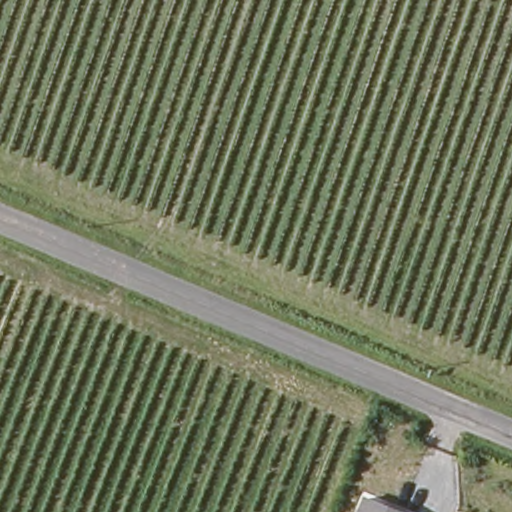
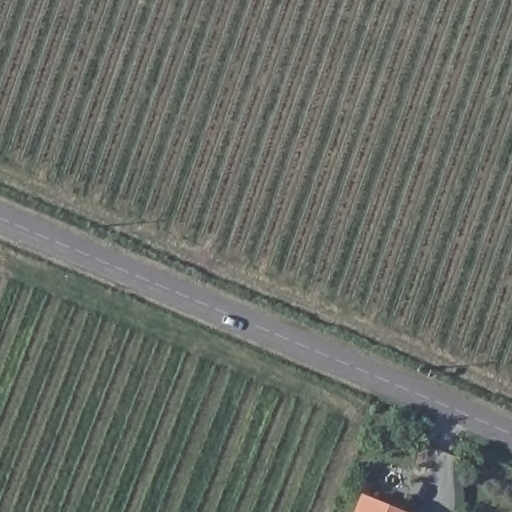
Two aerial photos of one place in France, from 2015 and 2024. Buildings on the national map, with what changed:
unchanged [(396,512),(358,512),(364,498),(396,512)]

